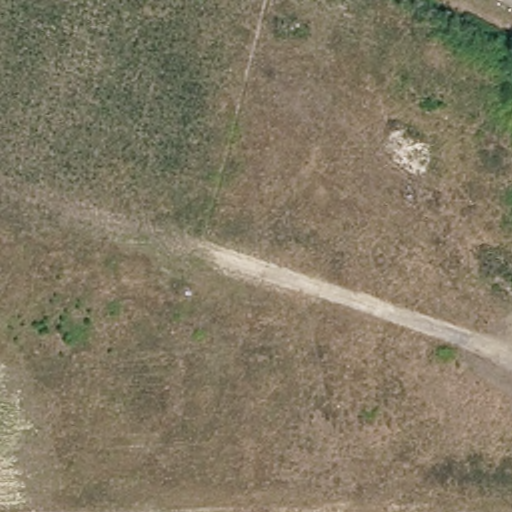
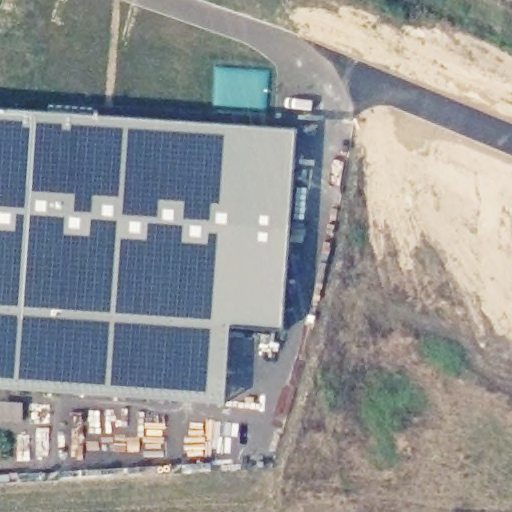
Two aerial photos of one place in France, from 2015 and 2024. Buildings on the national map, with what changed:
new [(0,390),(0,110),(296,130),(282,331),(230,327),(224,404),(0,390)]

